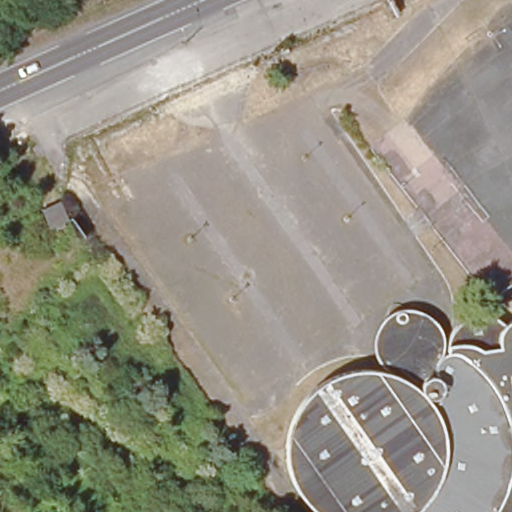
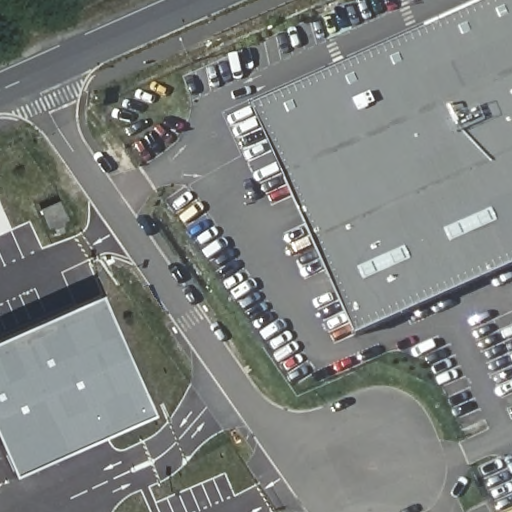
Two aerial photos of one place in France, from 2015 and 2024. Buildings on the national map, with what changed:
new [(357,331),(253,102),(477,0),(512,0),(512,260),(357,331)]
unchanged [(42,211),(58,202),(68,221),(52,230),(42,211)]
new [(154,417),(13,478),(0,450),(0,341),(101,297),(154,417)]
demolished [(320,510),(316,507),(312,504),(309,501),(305,498),(302,493),(297,489),(295,485),(292,480),(290,475),(287,470),(286,465),(285,459),(282,454),(282,448),(282,442),(282,437),(282,431),(283,426),(284,422),(286,417),(287,413),(289,407),(292,402),(295,397),(297,392),(301,388),(305,384),(309,379),(315,375),(318,373),(323,369),(330,366),(335,365),(340,363),(344,362),(349,360),(355,359),(359,359),(363,358),(366,358),(370,358),(374,358),(377,359),(380,359),(383,359),(386,360),(391,361),(395,363),(398,365),(402,367),(405,368),(407,370),(410,371),(412,373),(416,376),(419,378),(422,381),(423,378),(426,375),(428,372),(432,370),(436,368),(438,368),(440,368),(443,368),(441,364),(441,360),(441,357),(442,354),(443,350),(445,348),(447,345),(450,344),(451,343),(452,335),(455,330),(456,328),(456,327),(457,324),(461,318),(466,314),(471,311),(476,308),(485,305),(492,304),(497,305),(499,305),(509,315),(512,313),(512,512),(325,512),(323,511),(320,510)]
demolished [(375,331),(381,321),(392,313),(402,310),(413,311),(424,315),(434,320),(440,328),(442,339),(442,348),(442,354),(441,357),(441,360),(441,364),(443,368),(440,368),(438,368),(436,368),(432,370),(428,372),(426,375),(423,378),(422,381),(419,378),(416,376),(412,373),(410,371),(407,370),(405,368),(402,367),(398,365),(395,363),(391,361),(386,360),(383,359),(380,359),(377,359),(375,358),(372,352),(372,343),(375,331)]

